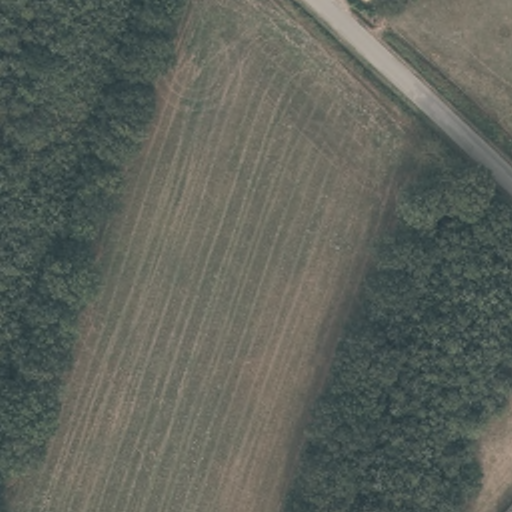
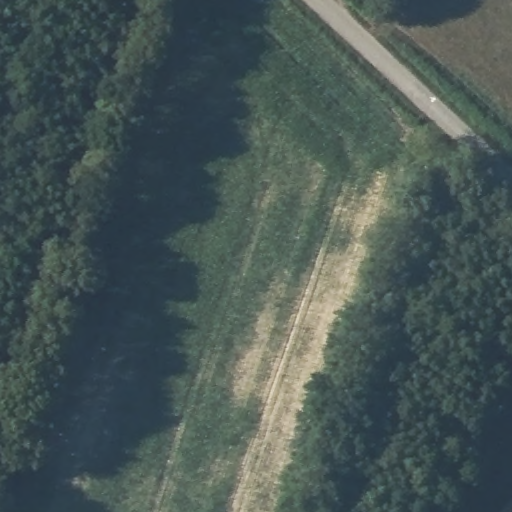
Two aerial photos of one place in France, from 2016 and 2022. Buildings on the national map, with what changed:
unchanged [(497,512),(512,497),(512,512),(497,512)]

